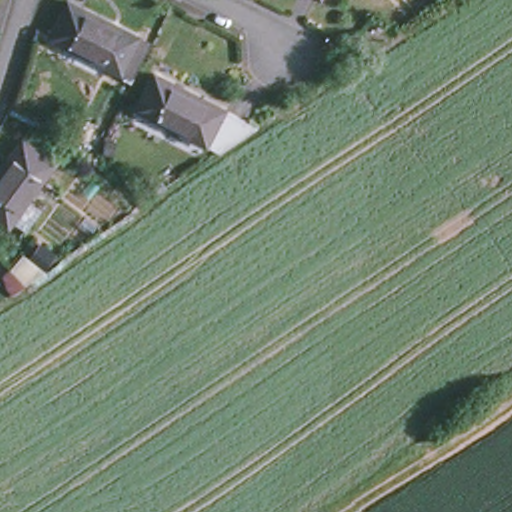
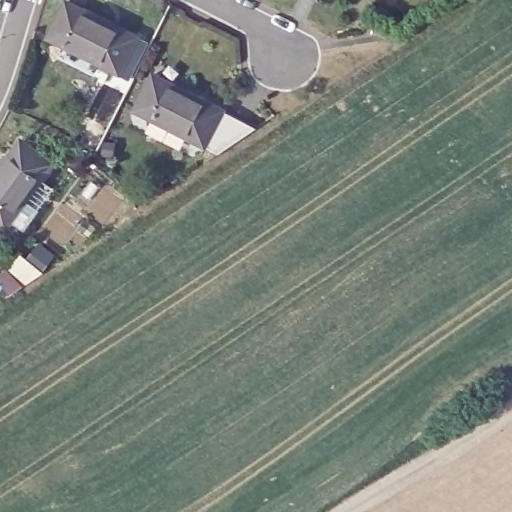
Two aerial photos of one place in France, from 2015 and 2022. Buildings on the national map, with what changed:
unchanged [(132,44),(114,75),(50,39),(68,6),(132,44)]
unchanged [(132,106),(149,73),(217,106),(200,140),(132,106)]
unchanged [(217,106),(255,125),(218,150),(200,140),(217,106)]
unchanged [(52,162),(6,222),(0,218),(0,164),(20,137),(52,162)]

